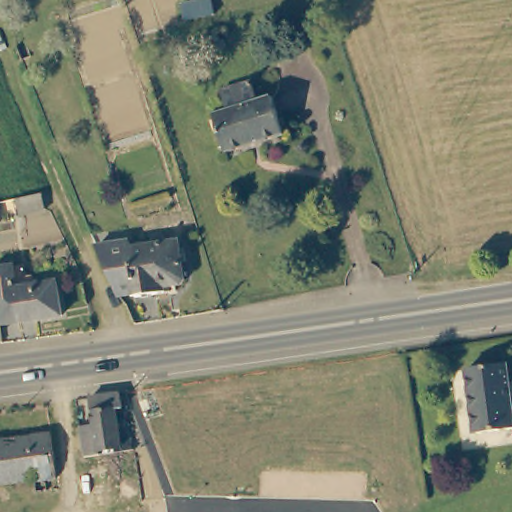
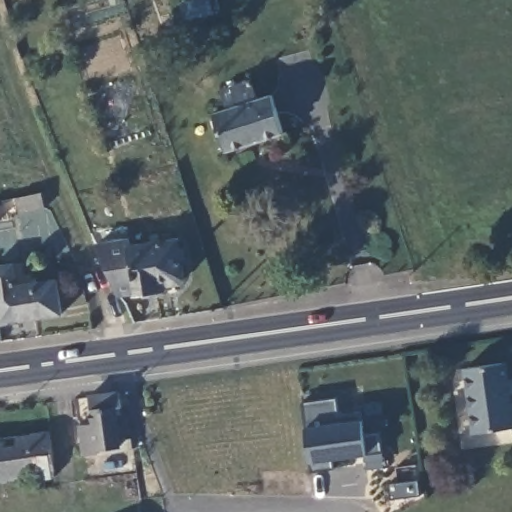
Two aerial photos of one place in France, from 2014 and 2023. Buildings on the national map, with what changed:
unchanged [(182,21),(178,0),(213,0),(216,17),(182,21)]
unchanged [(226,113),(221,94),(251,85),(257,104),(269,100),(281,137),(224,154),(212,117),(226,113)]
unchanged [(22,211),(19,193),(36,190),(45,188),(48,208),(22,211)]
unchanged [(2,202),(4,215),(0,216),(0,202),(2,202)]
unchanged [(93,245),(121,240),(128,247),(174,239),(180,283),(151,288),(152,292),(131,295),(130,292),(112,295),(93,245)]
unchanged [(22,277),(29,276),(39,285),(54,282),(59,315),(0,324),(0,266),(20,264),(22,277)]
unchanged [(512,401),(512,429),(475,434),(466,368),(507,363),(512,401)]
unchanged [(121,447),(99,450),(100,454),(84,456),(81,433),(80,426),(94,424),(91,397),(120,393),(123,408),(116,409),(121,447)]
new [(338,418),(360,415),(362,420),(366,436),(381,432),(386,453),(369,457),(333,463),(334,468),(313,471),(313,463),(307,428),(304,404),(337,398),(338,418)]
unchanged [(56,478),(0,484),(0,438),(51,433),(56,478)]

